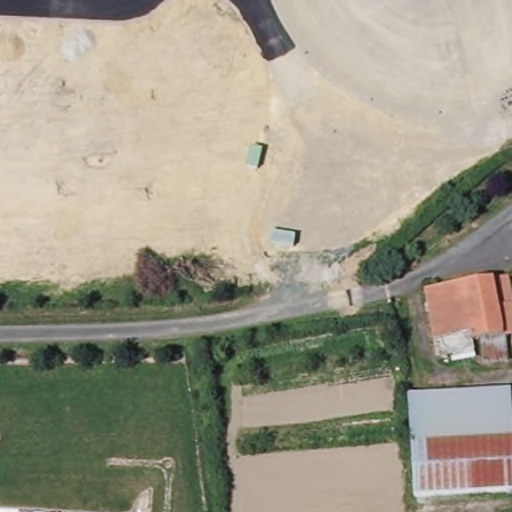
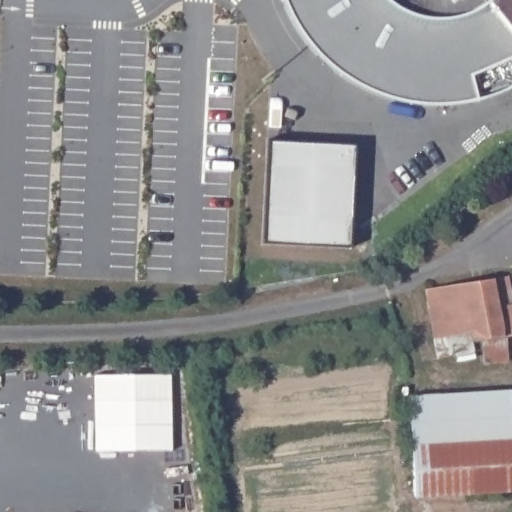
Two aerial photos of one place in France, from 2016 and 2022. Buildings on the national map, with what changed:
new [(512,85),(475,99),(453,102),(423,104),(379,94),(343,77),(315,54),(292,22),(282,0),(512,0),(512,85)]
new [(355,147),(350,247),(263,242),(269,143),(355,147)]
unchanged [(495,310),(512,310),(512,348),(470,352),(468,343),(437,346),(432,296),(493,290),(495,310)]
unchanged [(512,394),(512,496),(411,487),(415,437),(420,387),(512,394)]

